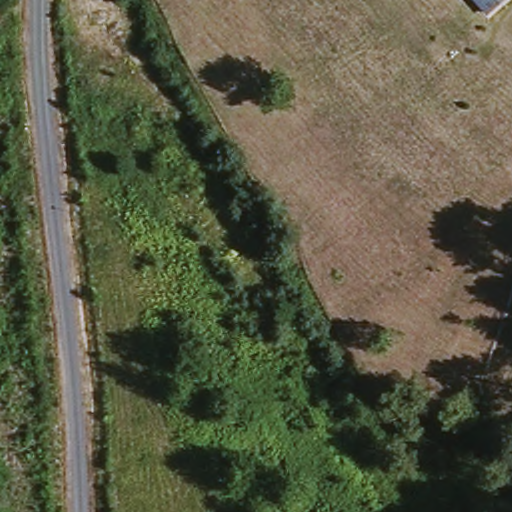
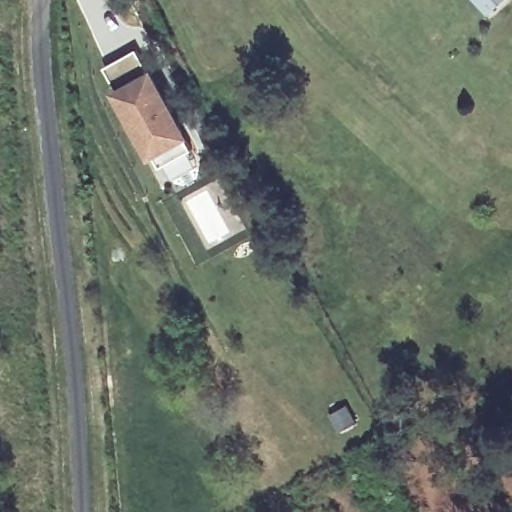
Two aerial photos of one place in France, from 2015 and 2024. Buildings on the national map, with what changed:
unchanged [(476,0),(504,0),(488,14),(476,0)]
new [(161,168),(156,158),(150,161),(114,93),(118,90),(106,70),(135,52),(147,73),(152,71),(189,140),(185,142),(190,152),(161,168)]

